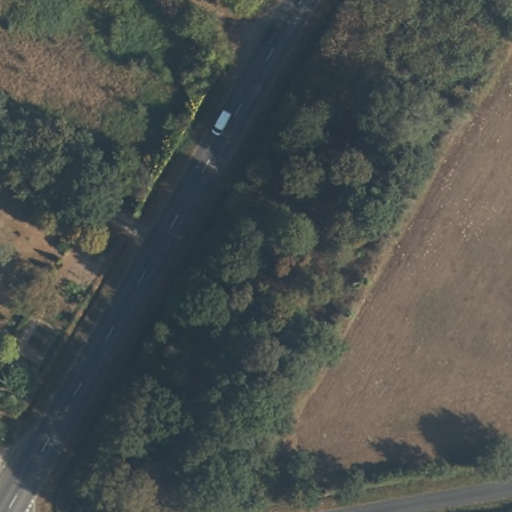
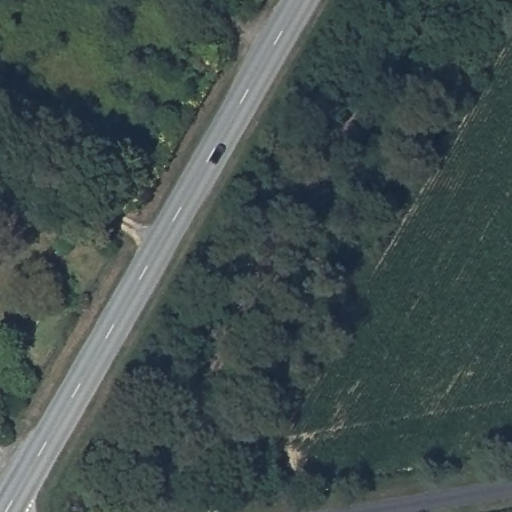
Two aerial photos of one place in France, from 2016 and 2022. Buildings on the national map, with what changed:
unchanged [(0,440),(0,437),(1,438),(0,440)]

